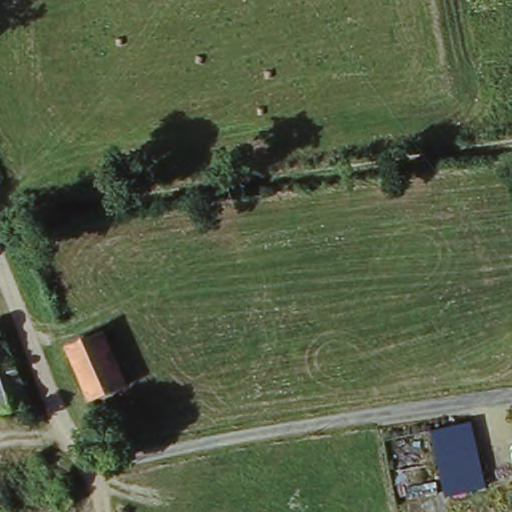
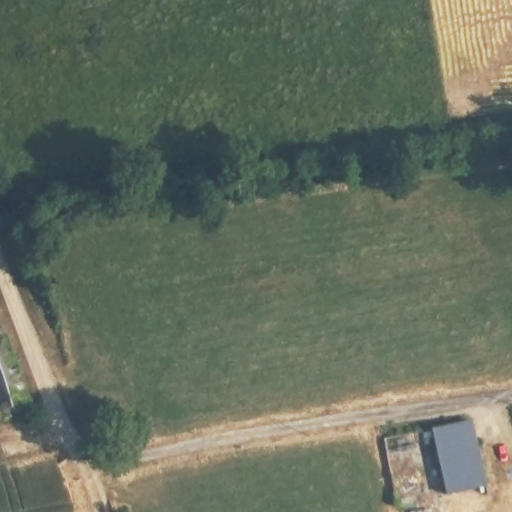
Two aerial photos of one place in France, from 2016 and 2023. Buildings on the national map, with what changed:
demolished [(105,324),(129,380),(93,396),(71,342),(105,324)]
unchanged [(20,396),(0,403),(0,336),(20,396)]
unchanged [(445,495),(430,431),(471,422),(485,485),(445,495)]

